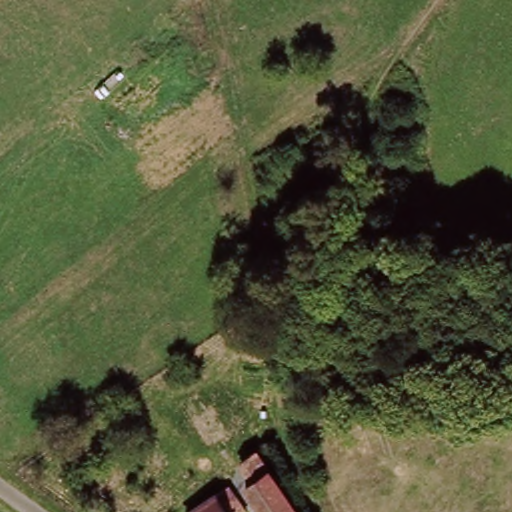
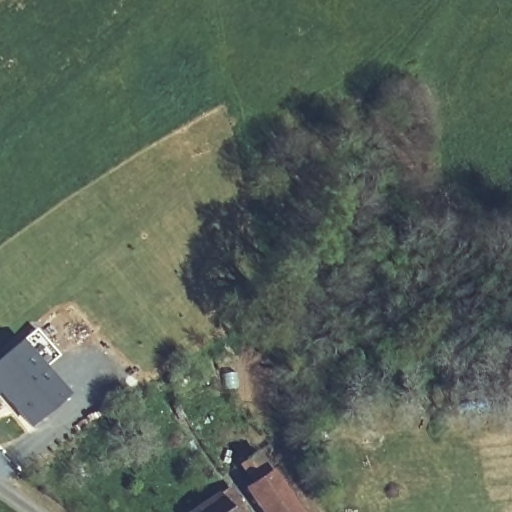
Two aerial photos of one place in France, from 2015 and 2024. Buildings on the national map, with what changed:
new [(0,396),(0,356),(20,338),(67,395),(27,429),(0,396)]
unchanged [(243,490),(252,483),(240,463),(254,453),(297,512),(260,512),(243,490)]
unchanged [(218,493),(234,512),(194,512),(218,493)]

